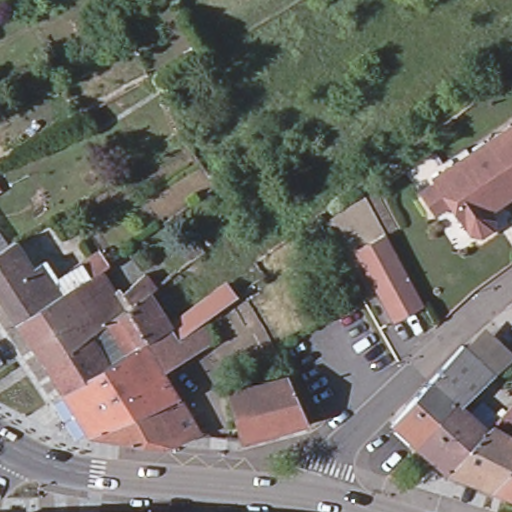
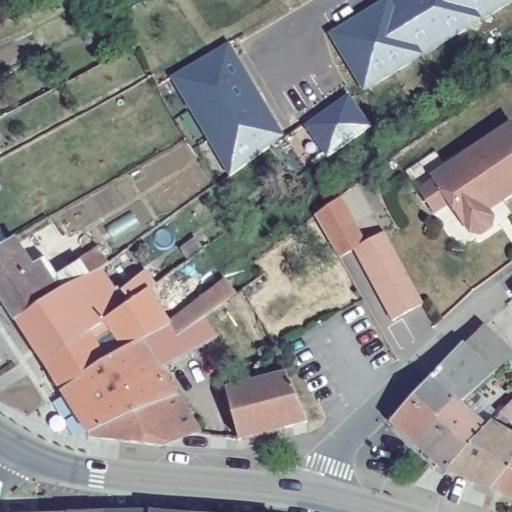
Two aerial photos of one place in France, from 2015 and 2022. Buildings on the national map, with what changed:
new [(512,0),(512,2),(364,90),(331,33),(386,0),(512,0)]
new [(171,76),(228,42),(284,135),(231,176),(171,76)]
new [(351,93),(373,125),(327,157),(306,125),(351,93)]
unchanged [(511,130),(512,129),(512,199),(494,210),(467,158),(511,130)]
unchanged [(439,213),(419,181),(421,180),(455,158),(459,163),(467,158),(494,210),(502,224),(485,235),(464,250),(439,213)]
unchanged [(426,304),(396,320),(358,250),(388,234),(426,304)]
unchanged [(201,247),(188,258),(181,249),(195,238),(201,247)]
unchanged [(18,317),(0,290),(0,251),(15,242),(33,269),(42,263),(59,289),(18,317)]
unchanged [(59,289),(90,269),(81,255),(99,242),(109,256),(97,265),(111,285),(116,281),(120,287),(144,270),(156,282),(149,286),(170,320),(62,386),(44,358),(18,317),(59,289)]
unchanged [(158,268),(164,264),(170,271),(163,276),(158,268)]
unchanged [(62,386),(170,320),(179,313),(229,278),(238,290),(204,314),(216,333),(188,350),(164,365),(199,426),(188,430),(162,440),(146,437),(92,432),(62,386)]
unchanged [(512,348),(512,355),(494,372),(464,345),(487,324),(512,348)]
unchanged [(394,422),(464,345),(494,372),(461,407),(457,403),(419,445),(394,422)]
unchanged [(288,378),(227,394),(222,375),(281,361),(288,378)]
unchanged [(306,425),(241,443),(227,394),(288,378),(306,425)]
unchanged [(449,472),(419,445),(457,403),(461,407),(487,431),(449,472)]
unchanged [(512,406),(512,421),(503,416),(512,406)]
unchanged [(449,472),(487,431),(494,424),(512,435),(512,469),(496,490),(449,472)]
unchanged [(512,469),(512,496),(496,490),(512,469)]

